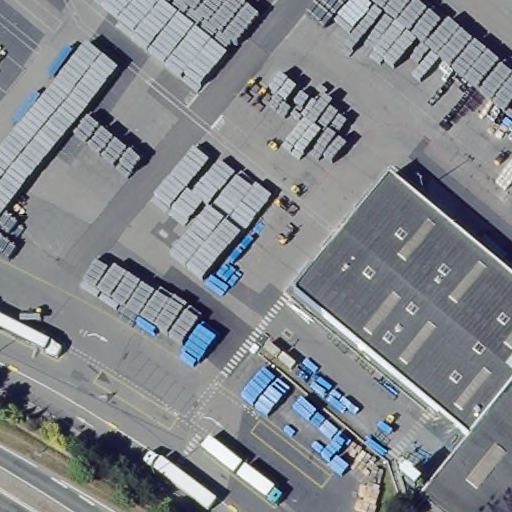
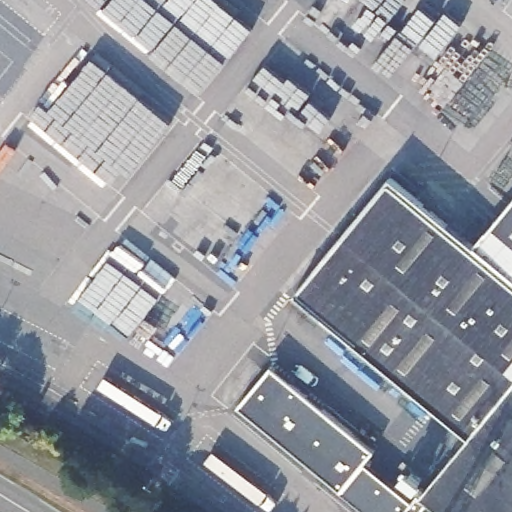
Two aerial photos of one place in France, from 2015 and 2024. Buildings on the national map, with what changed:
unchanged [(468,432),(294,284),(390,168),(477,242),(512,201),(512,512),(442,512),(417,490),(468,432)]
new [(402,492),(397,499),(402,503),(401,512),(365,512),(239,410),(271,369),(377,453),(367,465),(402,492)]

